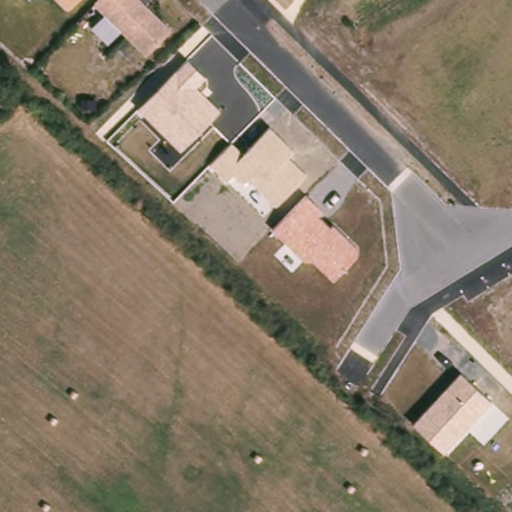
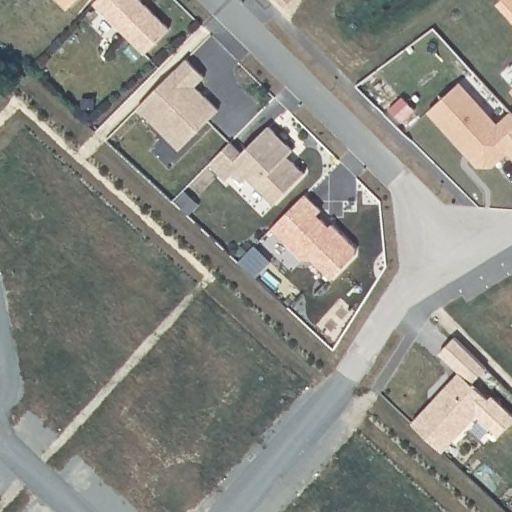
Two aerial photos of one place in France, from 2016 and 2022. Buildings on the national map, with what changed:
unchanged [(77,0),(68,10),(59,0),(77,0)]
unchanged [(101,0),(140,0),(169,29),(145,55),(95,6),(101,0)]
new [(502,0),(512,0),(512,19),(497,5),(502,0)]
unchanged [(138,110),(185,57),(206,77),(197,87),(221,107),(179,151),(138,110)]
new [(468,85),(507,127),(512,123),(512,157),(501,167),(487,166),(479,158),(473,150),(438,112),(468,85)]
new [(512,90),(512,92),(511,90),(512,90)]
unchanged [(230,140),(242,152),(270,125),(295,149),(289,158),(305,175),(276,204),(248,176),(243,182),(235,173),(227,180),(208,164),(230,140)]
unchanged [(304,195),(322,211),(318,216),(329,227),(333,224),(354,245),(357,255),(333,280),(313,260),(302,258),(271,230),(304,195)]
unchanged [(411,424),(459,372),(490,405),(444,454),(411,424)]

